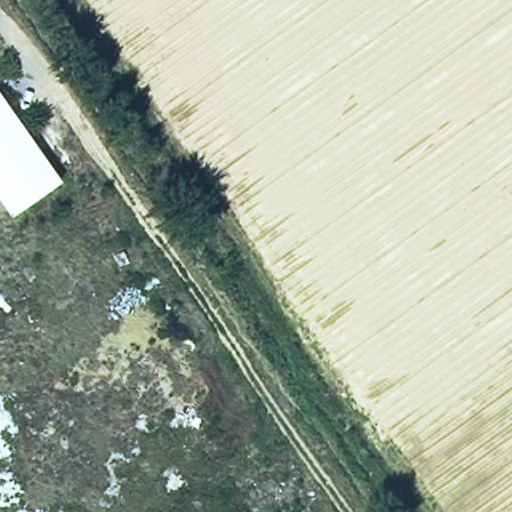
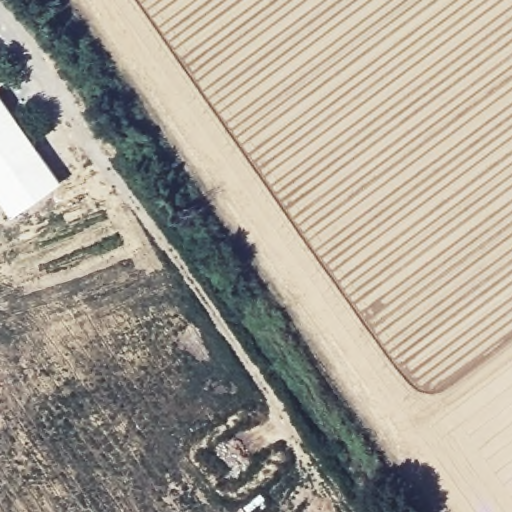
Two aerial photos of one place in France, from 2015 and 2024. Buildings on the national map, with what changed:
unchanged [(8,220),(0,207),(0,108),(56,187),(8,220)]

